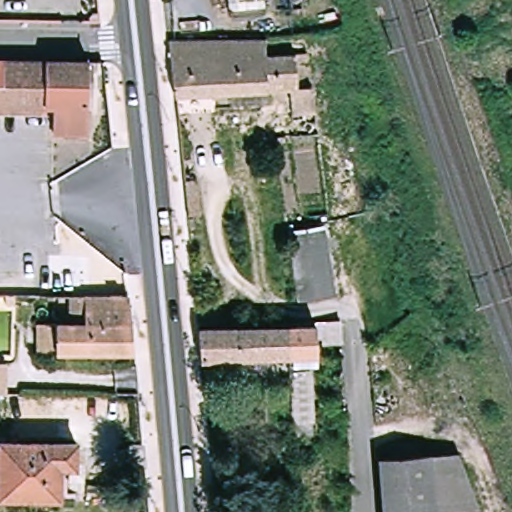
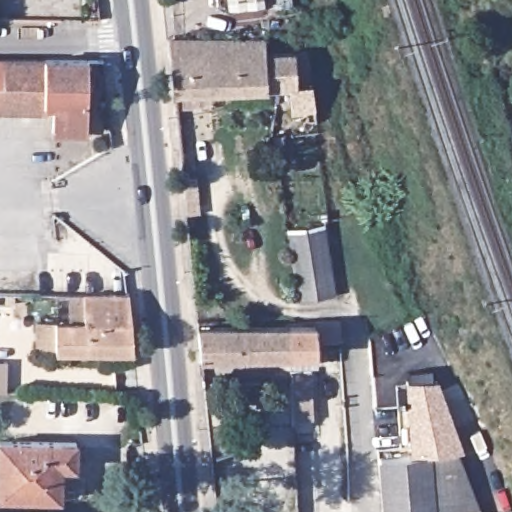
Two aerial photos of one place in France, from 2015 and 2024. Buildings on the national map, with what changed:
unchanged [(265,4),(231,6),(230,0),(264,0),(265,4)]
unchanged [(270,37),(272,52),(273,65),(219,70),(222,94),(178,97),(174,45),(270,37)]
unchanged [(296,111),(294,89),(222,94),(219,70),(273,65),(272,52),(311,49),(314,49),(314,51),(317,78),(318,87),(320,109),(296,111)]
unchanged [(87,104),(52,102),(51,112),(0,110),(0,55),(87,57),(87,104)]
unchanged [(87,104),(87,136),(53,135),(51,112),(52,102),(87,104)]
unchanged [(182,179),(196,178),(198,199),(206,199),(207,216),(185,217),(182,179)]
unchanged [(307,301),(296,230),(331,225),(342,297),(307,302),(307,301)]
unchanged [(134,353),(134,354),(38,352),(38,334),(55,335),(55,321),(83,321),(83,295),(130,296),(134,353)]
unchanged [(248,323),(319,321),(343,321),(345,343),(328,344),(327,338),(320,340),(320,356),(292,357),(249,358),(248,323)]
unchanged [(201,326),(248,323),(249,358),(205,360),(201,326)]
unchanged [(7,392),(0,392),(0,361),(8,362),(7,392)]
new [(405,385),(405,382),(409,382),(407,372),(432,371),(433,382),(439,382),(465,452),(455,455),(427,457),(410,458),(407,405),(397,406),(397,385),(405,385)]
unchanged [(293,372),(314,372),(315,421),(296,422),(293,372)]
unchanged [(62,467),(61,498),(0,497),(0,441),(75,442),(74,467),(62,467)]
unchanged [(389,460),(388,448),(407,447),(408,458),(427,457),(432,512),(384,512),(380,461),(389,460)]
unchanged [(477,512),(432,512),(427,457),(455,455),(477,512)]

